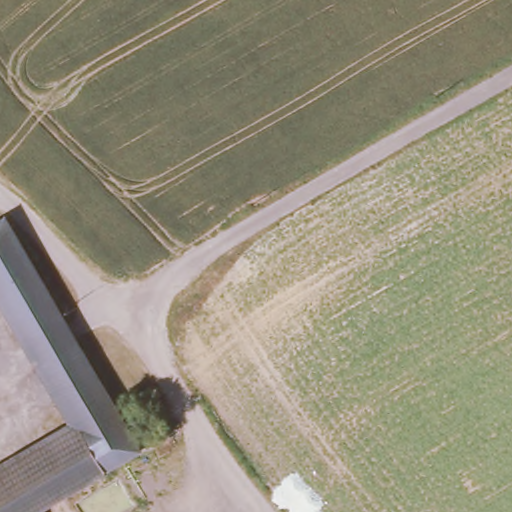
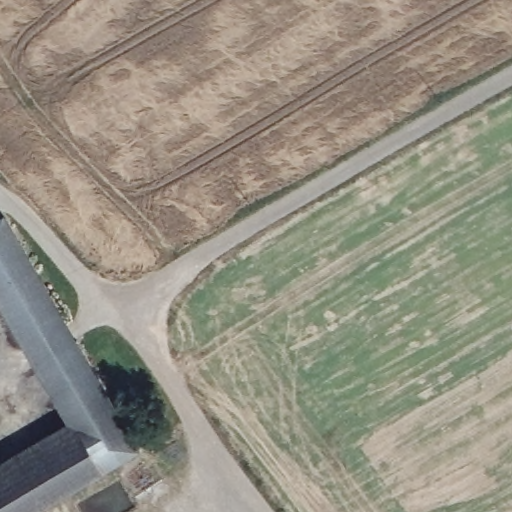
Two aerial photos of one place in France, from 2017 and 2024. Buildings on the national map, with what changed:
unchanged [(0,311),(0,214),(3,212),(93,369),(139,449),(36,512),(0,512),(0,478),(69,436),(0,311)]

